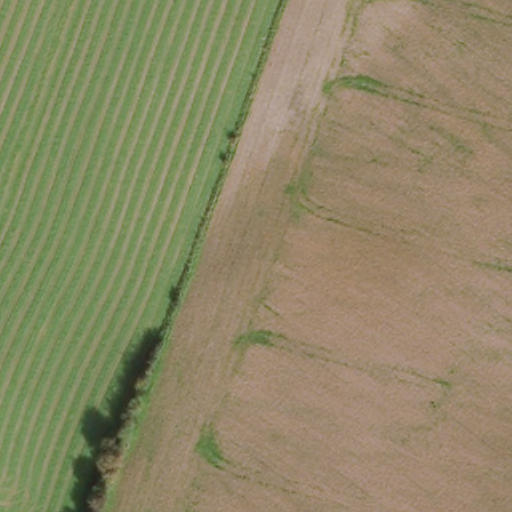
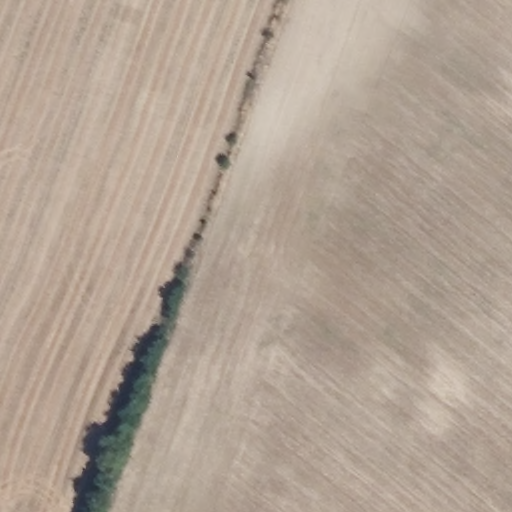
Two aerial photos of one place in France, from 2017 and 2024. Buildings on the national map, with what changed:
[]

